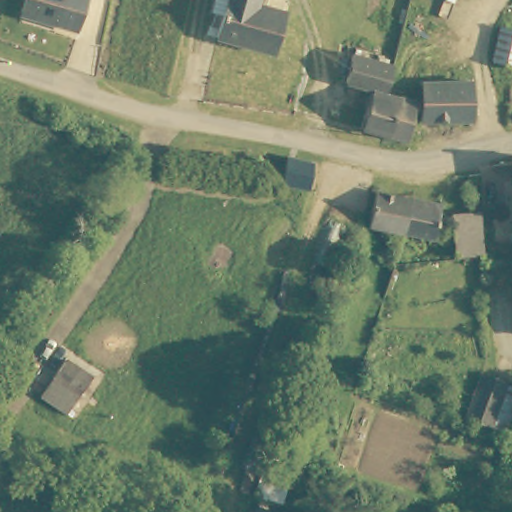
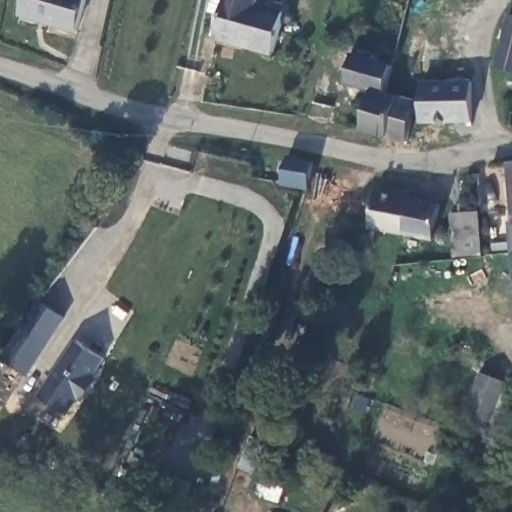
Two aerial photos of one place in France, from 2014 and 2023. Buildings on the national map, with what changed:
unchanged [(28,0),(88,0),(78,30),(24,14),(28,0)]
unchanged [(220,16),(208,13),(212,0),(255,0),(254,4),(283,13),(270,54),(214,38),(220,16)]
unchanged [(389,138),(364,133),(378,90),(349,82),(357,53),(398,65),(388,93),(400,96),(419,101),(409,142),(389,138)]
unchanged [(423,84),(474,83),(474,122),(423,122),(423,84)]
unchanged [(289,156),(314,162),(312,187),(283,183),(289,156)]
unchanged [(508,162),(512,162),(512,201),(508,162)]
unchanged [(378,187),(413,194),(406,228),(372,222),(378,187)]
unchanged [(413,194),(443,200),(436,234),(406,228),(413,194)]
unchanged [(455,223),(484,221),(485,249),(456,250),(455,223)]
unchanged [(510,221),(512,221),(512,243),(510,221)]
new [(38,299),(63,316),(26,371),(1,355),(38,299)]
unchanged [(54,376),(65,357),(93,373),(70,411),(43,395),(54,376)]
unchanged [(490,379),(512,389),(512,391),(496,431),(473,423),(490,379)]
unchanged [(275,468),(292,473),(284,496),(268,492),(275,468)]

